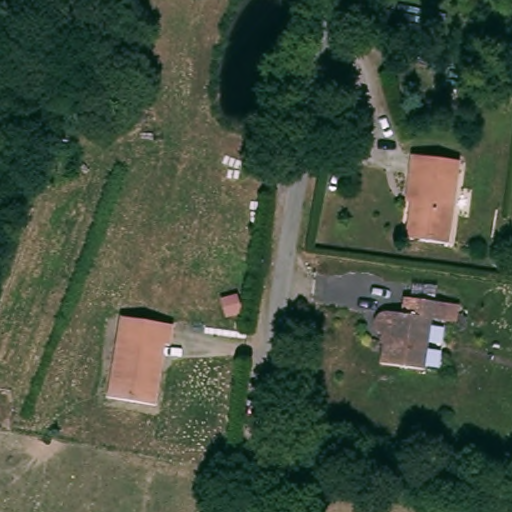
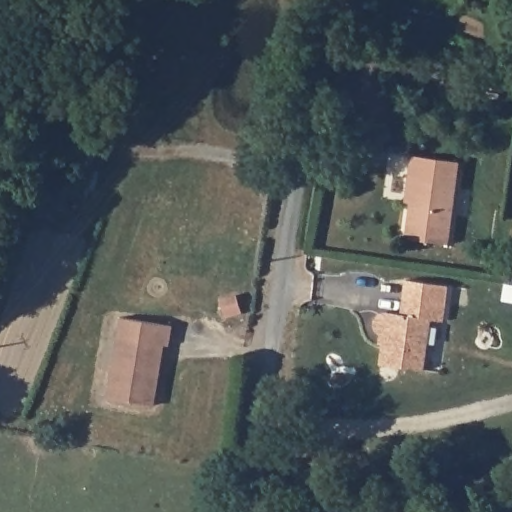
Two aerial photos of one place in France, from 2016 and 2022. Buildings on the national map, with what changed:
unchanged [(406,175),(409,155),(458,163),(446,244),(402,237),(407,201),(411,176),(406,175)]
unchanged [(379,315),(385,310),(405,313),(406,298),(448,304),(446,324),(433,322),(426,371),(382,365),(386,334),(377,325),(377,322),(379,315)]
unchanged [(175,320),(172,341),(168,340),(160,402),(110,395),(123,311),(175,320)]

